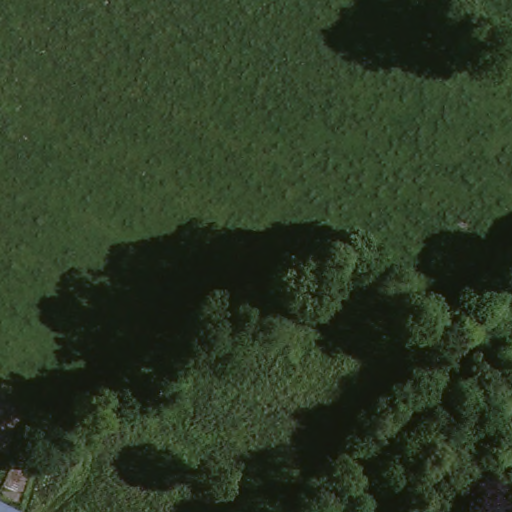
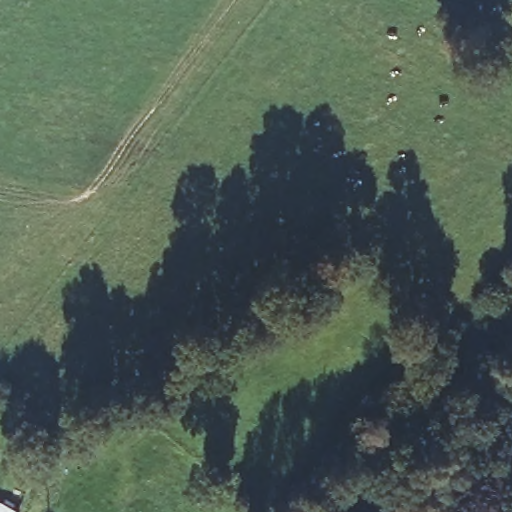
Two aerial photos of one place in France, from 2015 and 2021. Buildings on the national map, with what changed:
unchanged [(26,511),(25,512),(0,512),(0,508),(6,496),(28,507),(26,511)]

